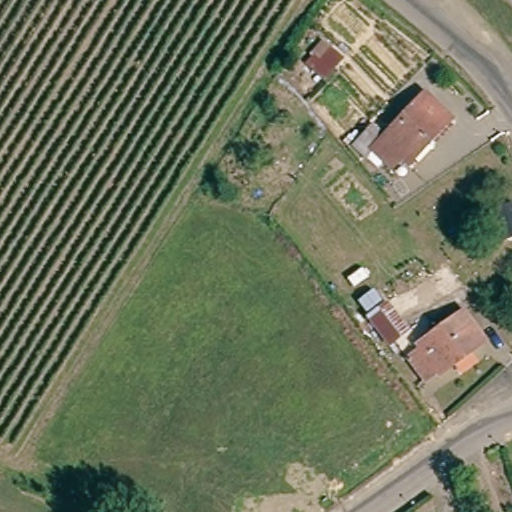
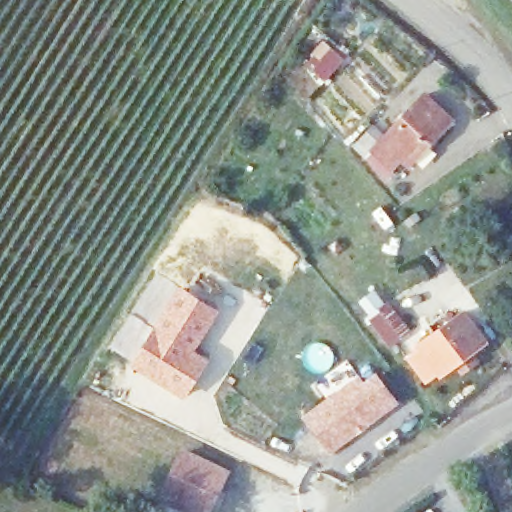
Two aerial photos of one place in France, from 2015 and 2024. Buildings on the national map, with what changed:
unchanged [(398,155),(384,167),(368,148),(423,92),(447,118),(403,162),(398,155)]
unchanged [(503,239),(499,229),(492,208),(512,201),(512,236),(503,239)]
new [(178,284),(221,311),(196,350),(211,360),(185,401),(128,363),(178,284)]
unchanged [(413,333),(396,349),(373,323),(377,320),(366,306),(375,297),(386,311),(390,307),(413,333)]
unchanged [(442,365),(429,376),(415,357),(427,346),(424,341),(465,307),(488,337),(447,372),(442,365)]
new [(358,375),(363,381),(377,371),(400,402),(328,456),(300,417),(358,375)]
new [(230,472),(213,512),(177,512),(156,502),(181,448),(230,472)]

